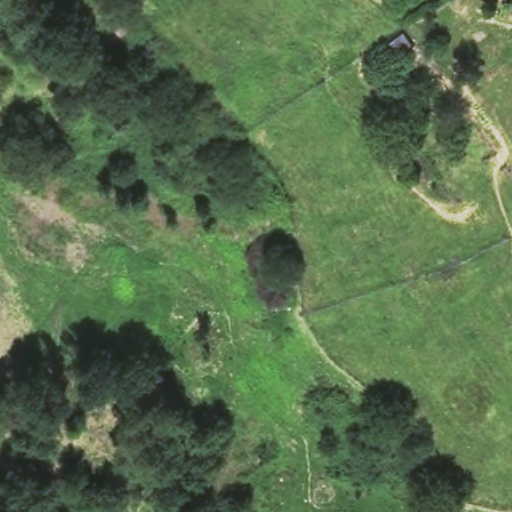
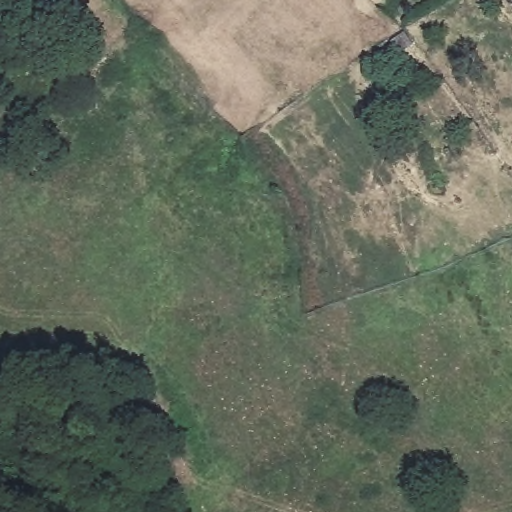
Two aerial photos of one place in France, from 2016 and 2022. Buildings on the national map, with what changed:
unchanged [(391,60),(382,46),(394,37),(403,51),(391,60)]

